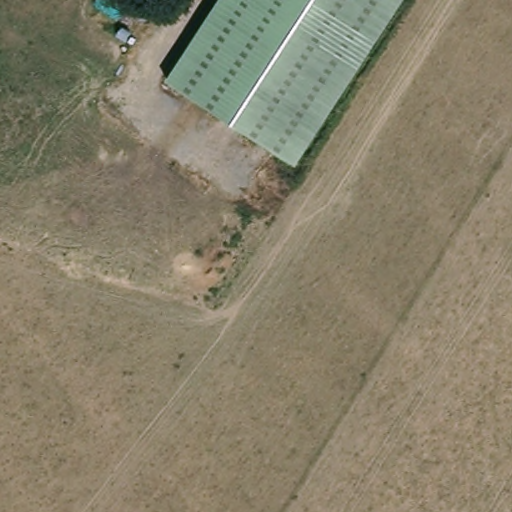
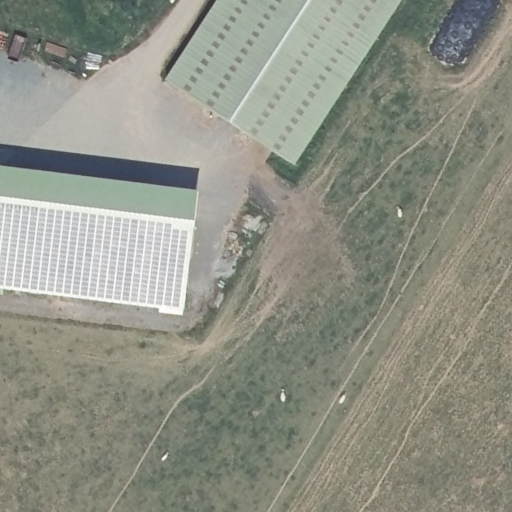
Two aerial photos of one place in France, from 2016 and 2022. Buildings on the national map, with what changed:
unchanged [(401,0),(340,94),(213,15),(223,0),(401,0)]
unchanged [(295,164),(169,84),(213,15),(340,94),(295,164)]
new [(199,192),(195,222),(0,203),(0,174),(199,192)]
new [(195,222),(184,311),(0,294),(0,203),(195,222)]

